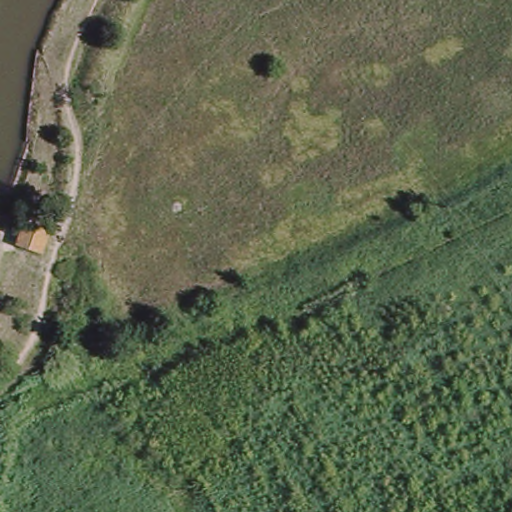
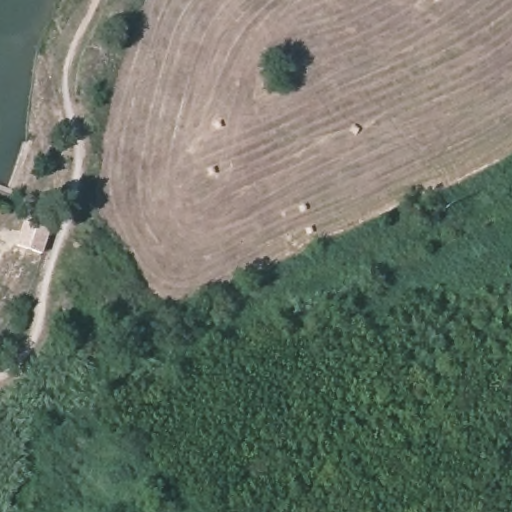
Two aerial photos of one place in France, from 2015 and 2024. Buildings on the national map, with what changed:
unchanged [(40,250),(20,244),(28,223),(47,229),(40,250)]

